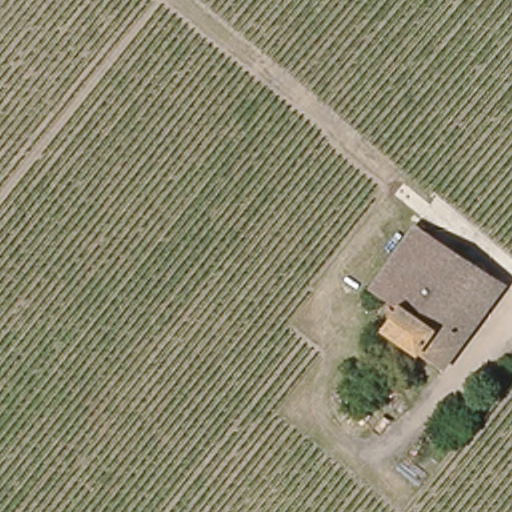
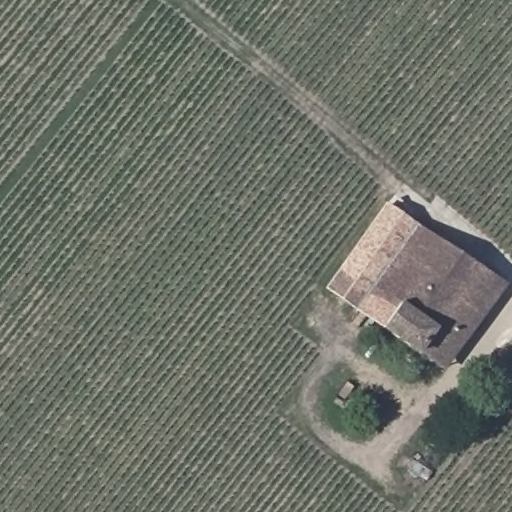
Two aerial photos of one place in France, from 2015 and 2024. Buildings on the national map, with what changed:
new [(381,328),(325,288),(386,202),(413,221),(411,224),(369,288),(396,306),(383,325),(381,328)]
unchanged [(383,325),(396,306),(369,288),(411,224),(458,257),(421,310),(415,307),(397,334),(383,325)]
unchanged [(415,307),(421,310),(458,257),(501,284),(459,351),(448,346),(437,360),(416,347),(397,334),(415,307)]

